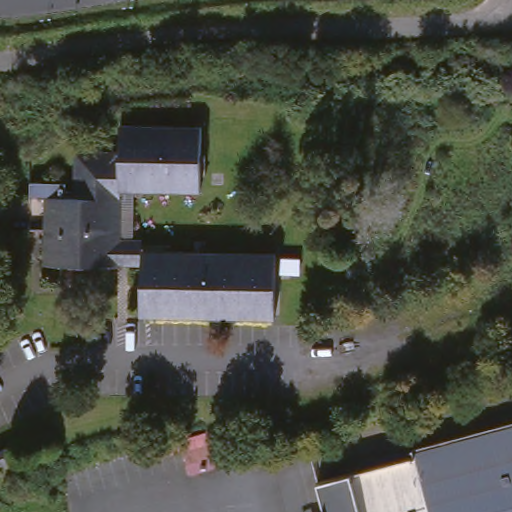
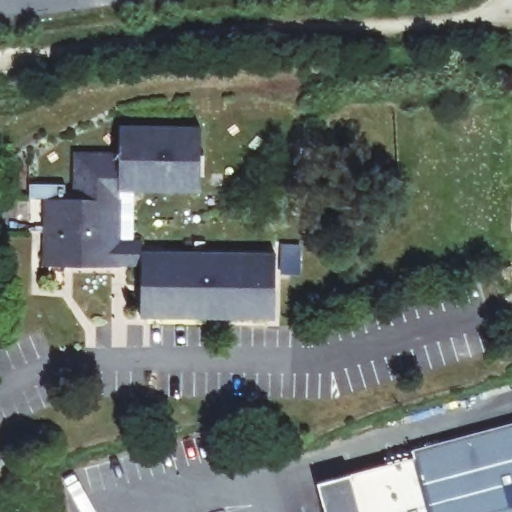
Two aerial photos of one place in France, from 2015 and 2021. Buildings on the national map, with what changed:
unchanged [(33,200),(34,185),(70,186),(70,205),(79,205),(80,156),(122,156),(124,131),(204,132),(205,194),(139,195),(122,195),(123,268),(47,268),(47,235),(32,235),(33,200)]
unchanged [(123,268),(122,195),(139,195),(137,237),(145,237),(146,258),(146,268),(123,268)]
unchanged [(280,257),(278,318),(147,317),(146,268),(146,258),(280,257)]
unchanged [(415,459),(421,457),(420,450),(512,424),(512,512),(431,512),(415,459)]
unchanged [(0,461),(0,446),(10,442),(15,456),(0,461)]
unchanged [(431,512),(333,512),(326,489),(324,482),(370,470),(415,459),(431,512)]

